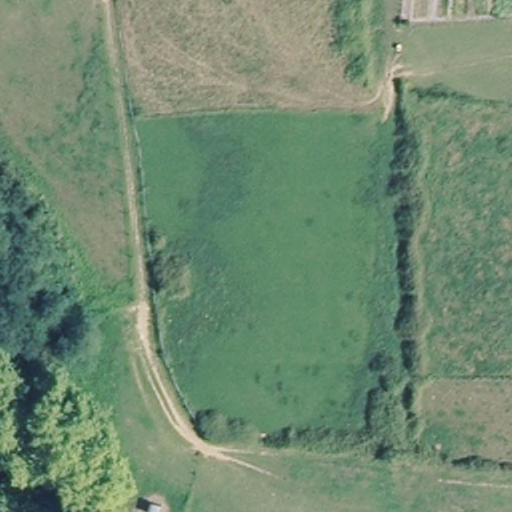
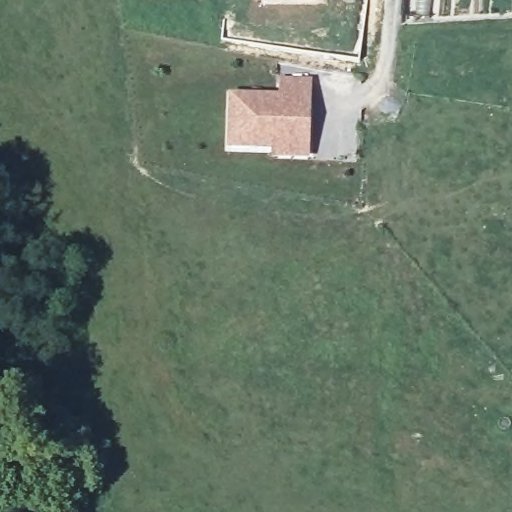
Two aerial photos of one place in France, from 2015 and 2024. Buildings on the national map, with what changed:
new [(278,95),(278,78),(310,79),(309,160),(272,160),(272,151),(229,150),(229,93),(278,95)]

